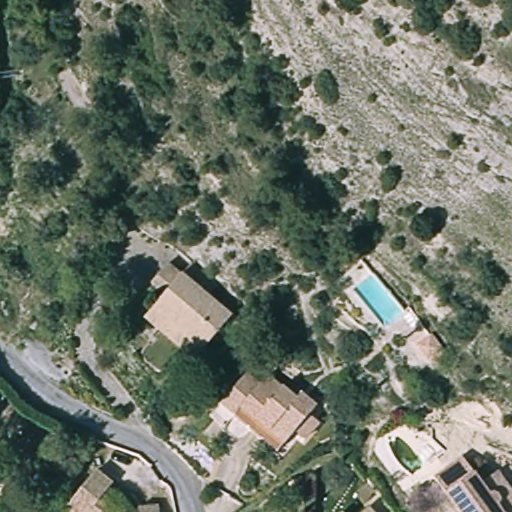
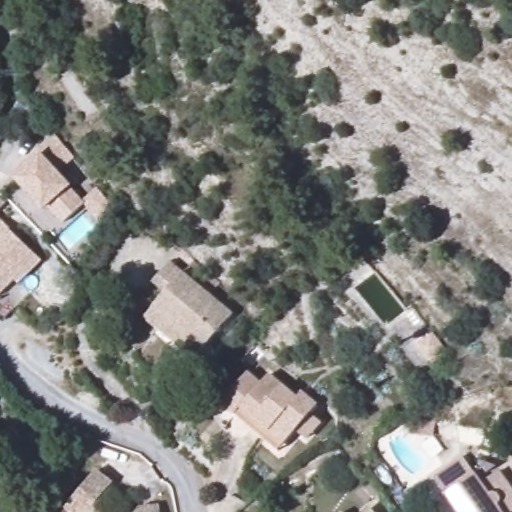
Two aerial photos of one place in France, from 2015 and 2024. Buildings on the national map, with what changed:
new [(39,153),(35,149),(53,132),(73,153),(57,169),(69,183),(67,185),(84,201),(64,221),(48,204),(45,207),(15,176),(39,153)]
new [(42,260),(17,285),(14,282),(0,296),(0,219),(42,260)]
unchanged [(188,273),(200,259),(227,287),(216,300),(233,320),(190,360),(147,314),(167,294),(155,282),(167,271),(177,261),(188,273)]
unchanged [(309,442),(297,431),(277,450),(226,396),(256,367),(266,376),(278,366),(303,392),(311,388),(326,403),(318,411),(329,422),(309,442)]
unchanged [(478,485),(496,473),(512,496),(512,512),(453,512),(431,479),(460,459),(478,485)]
unchanged [(120,486),(103,510),(105,512),(70,512),(97,467),(120,486)]
unchanged [(159,503),(162,512),(141,512),(143,506),(159,503)]

